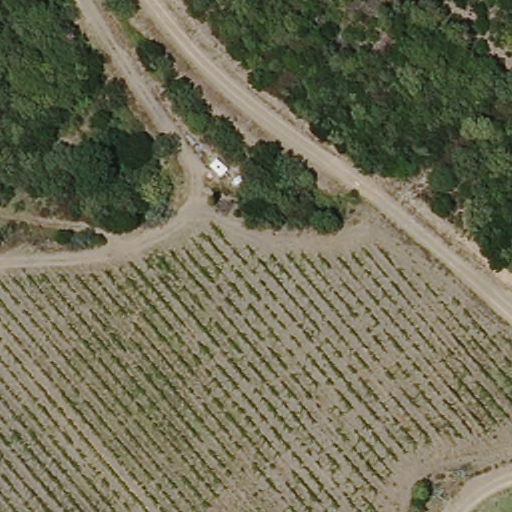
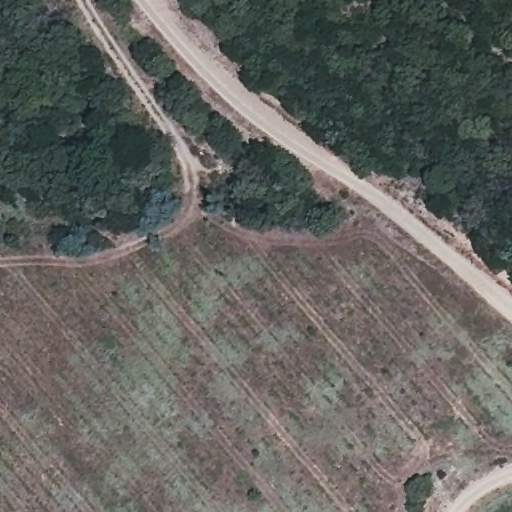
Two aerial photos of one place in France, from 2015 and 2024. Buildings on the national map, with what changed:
unchanged [(202,169),(212,158),(227,168),(217,178),(202,169)]

